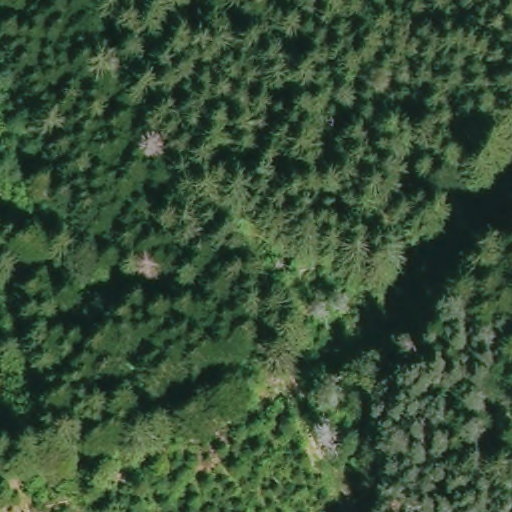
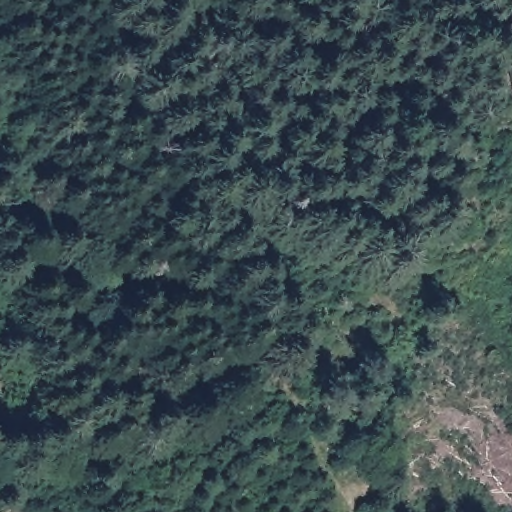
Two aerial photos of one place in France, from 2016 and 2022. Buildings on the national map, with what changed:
[]

